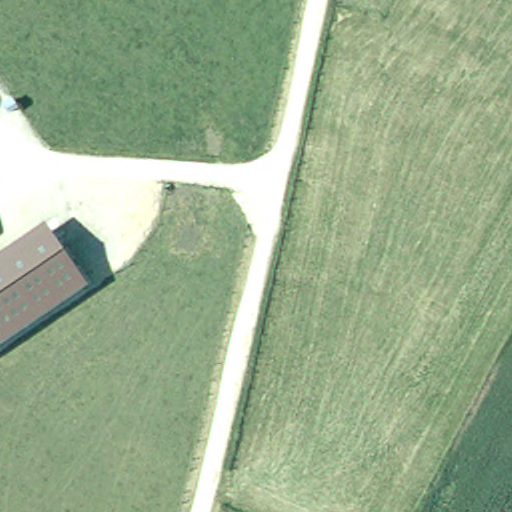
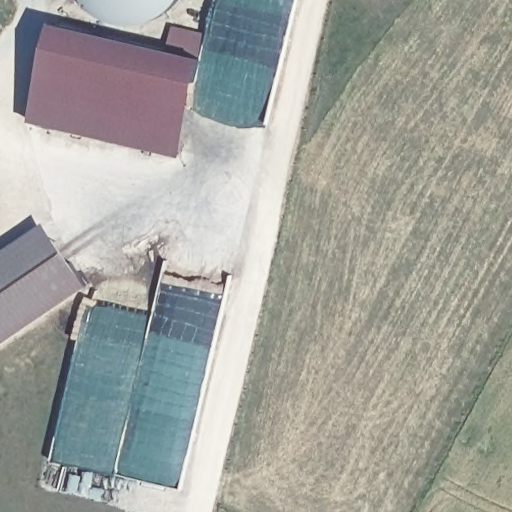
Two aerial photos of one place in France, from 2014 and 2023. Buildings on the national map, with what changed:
new [(182,157),(31,121),(55,22),(206,57),(182,157)]
unchanged [(45,222),(87,288),(0,348),(0,252),(45,222)]

